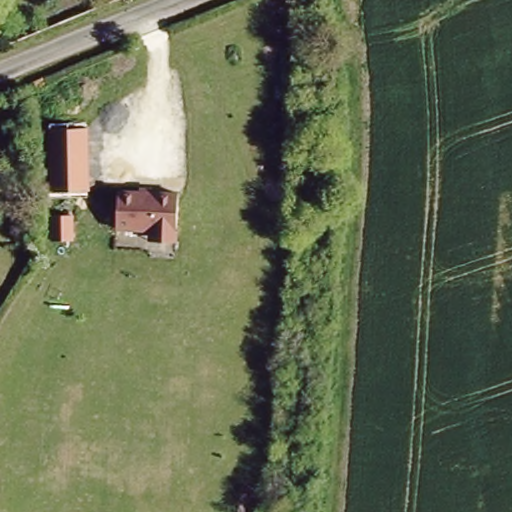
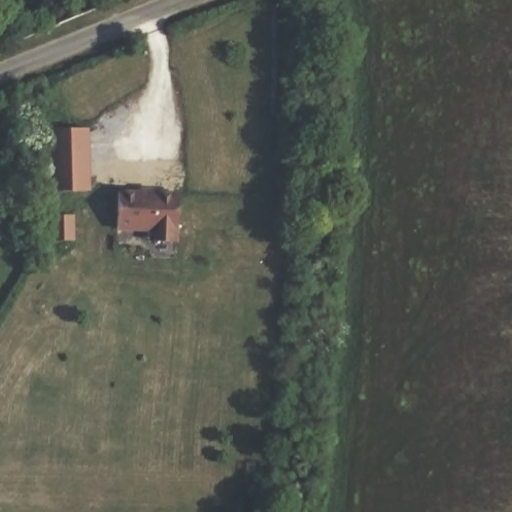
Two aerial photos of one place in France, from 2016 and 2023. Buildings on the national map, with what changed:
unchanged [(46,195),(45,126),(88,124),(89,192),(46,195)]
unchanged [(180,191),(179,239),(159,238),(158,224),(124,223),(124,190),(180,191)]

